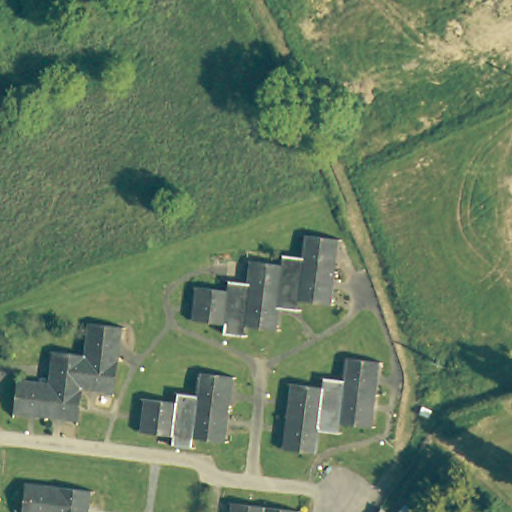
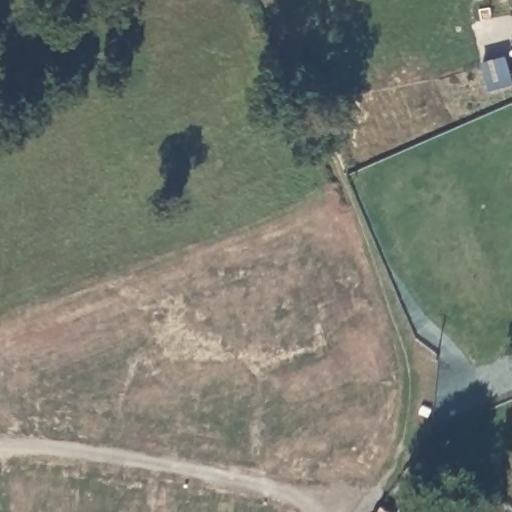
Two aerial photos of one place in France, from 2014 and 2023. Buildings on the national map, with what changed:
demolished [(227,291),(228,280),(247,282),(249,260),(282,263),(283,252),(302,254),(304,232),(337,237),(330,300),(298,297),(297,304),(280,302),(278,328),(245,325),(244,335),(223,333),(225,323),(193,320),(196,288),(227,291)]
demolished [(122,326),(112,390),(80,386),(76,419),(12,410),(16,378),(47,383),(52,350),(83,354),(88,321),(122,326)]
demolished [(325,387),(326,377),(344,379),(347,356),(378,360),(370,425),(340,421),(338,433),(321,431),(318,452),(284,447),(293,383),(325,387)]
demolished [(234,374),(225,440),(193,436),(191,446),(172,444),(173,434),(142,430),(146,398),(177,402),(179,391),(199,393),(202,370),(234,374)]
unchanged [(431,407),(426,413),(419,407),(423,401),(431,407)]
demolished [(89,512),(23,512),(27,481),(91,491),(89,512)]
demolished [(299,512),(234,512),(235,502),(299,510),(299,512)]

